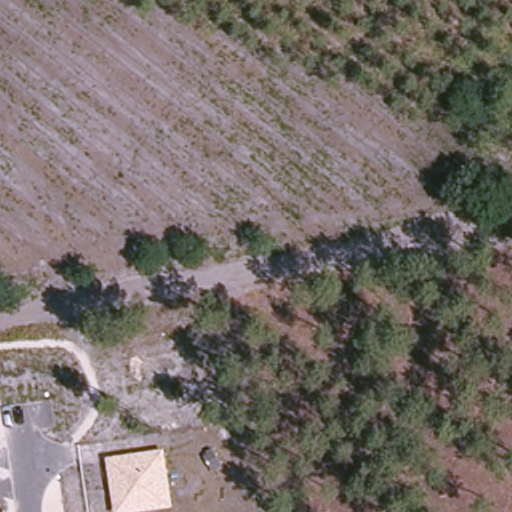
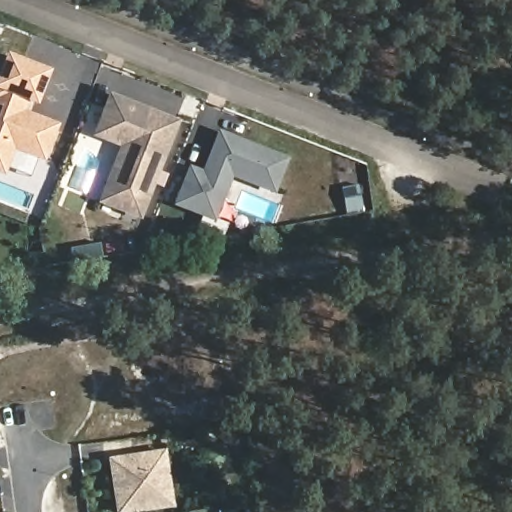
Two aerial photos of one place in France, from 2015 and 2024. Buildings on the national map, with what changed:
new [(13,149),(5,174),(0,172),(0,65),(5,52),(51,70),(37,105),(28,102),(25,110),(59,122),(45,160),(13,149)]
new [(96,201),(117,147),(90,136),(108,91),(179,120),(139,219),(96,201)]
new [(274,194),(233,177),(215,222),(172,205),(188,165),(201,170),(217,129),(289,157),(274,194)]
unchanged [(174,508),(149,512),(116,512),(107,458),(165,450),(174,508)]

